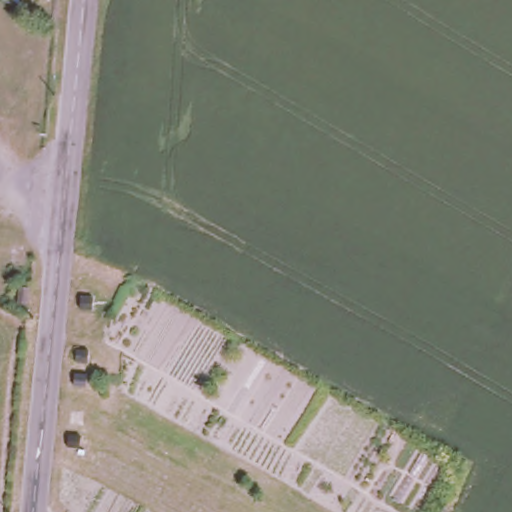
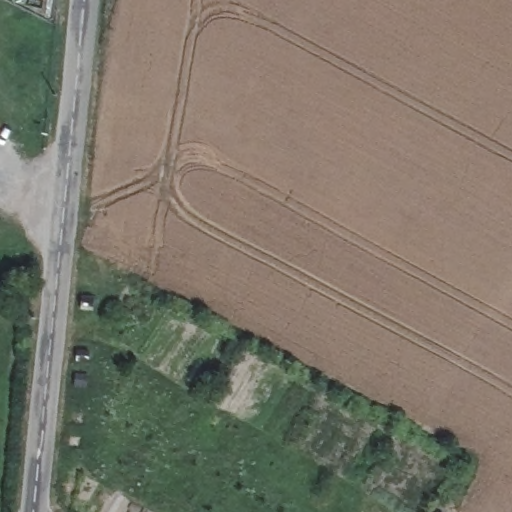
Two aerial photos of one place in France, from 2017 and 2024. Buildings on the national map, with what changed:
unchanged [(16,304),(18,287),(29,288),(27,305),(16,304)]

